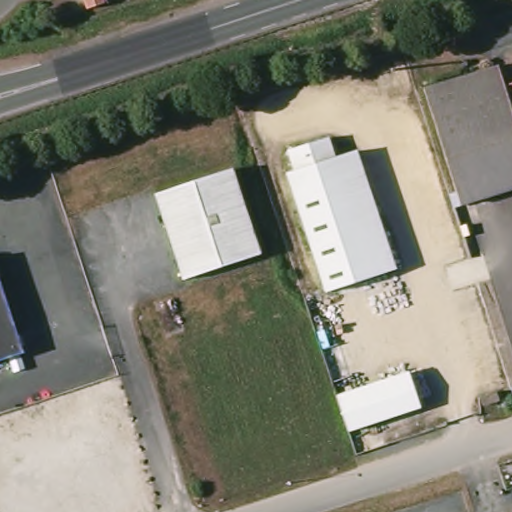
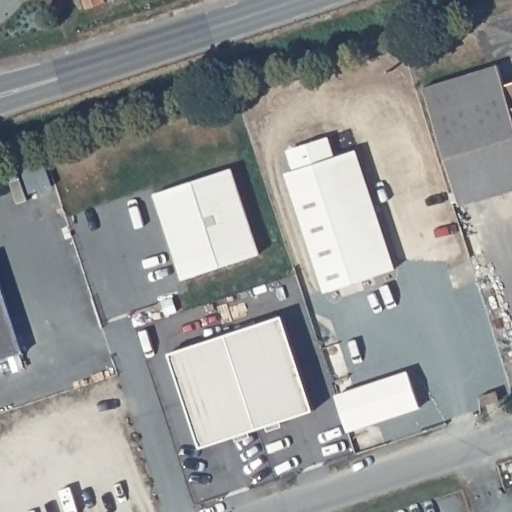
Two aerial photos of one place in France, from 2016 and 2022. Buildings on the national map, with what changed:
unchanged [(87,9),(84,0),(104,0),(105,3),(87,9)]
unchanged [(446,73),(435,75),(429,51),(440,49),(446,73)]
unchanged [(453,183),(433,117),(424,90),(425,90),(496,67),(502,86),(512,84),(512,189),(460,205),(453,183)]
unchanged [(374,277),(326,292),(286,173),(294,171),(289,156),(293,149),(327,138),(333,158),(374,277)]
unchanged [(395,270),(374,277),(333,158),(354,151),(395,270)]
unchanged [(260,255),(184,280),(155,194),(231,169),(260,255)]
unchanged [(25,354),(0,362),(0,280),(25,354)]
new [(283,317),(315,411),(201,449),(170,354),(283,317)]
unchanged [(335,396),(410,371),(422,409),(348,432),(335,396)]
unchanged [(500,401),(482,407),(480,396),(496,391),(500,401)]

